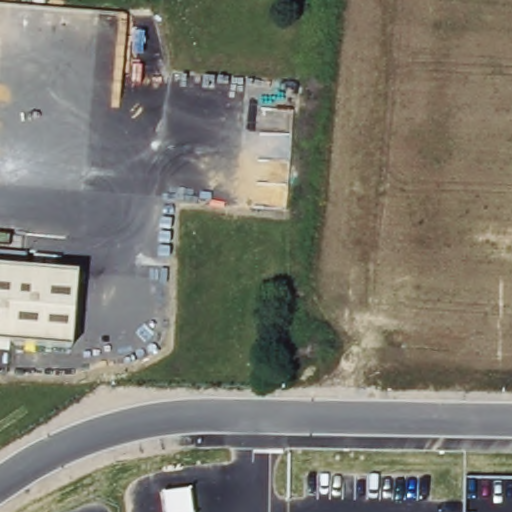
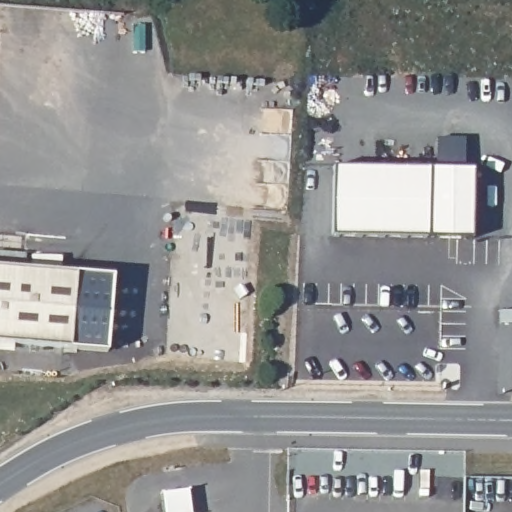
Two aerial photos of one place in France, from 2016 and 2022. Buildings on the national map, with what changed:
new [(438,166),(439,136),(466,137),(466,166),(476,167),(475,236),(334,234),(335,164),(438,166)]
unchanged [(70,350),(0,344),(0,268),(76,274),(70,350)]
unchanged [(190,490),(192,512),(166,512),(164,492),(190,490)]

